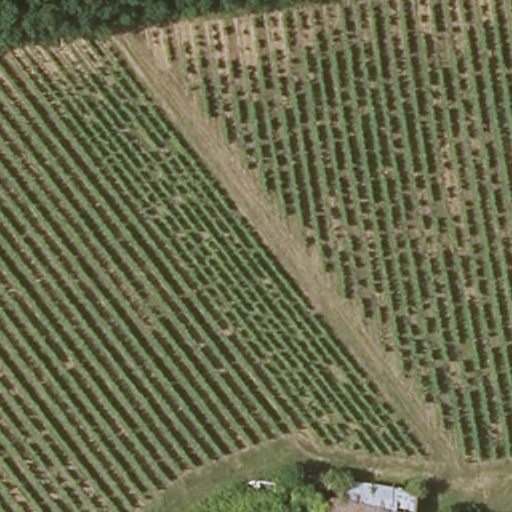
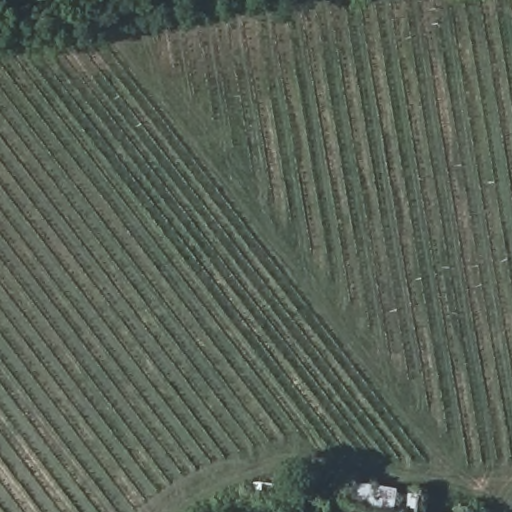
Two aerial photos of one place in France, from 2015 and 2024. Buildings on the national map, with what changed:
unchanged [(298,488),(409,512),(288,512),(298,488)]

